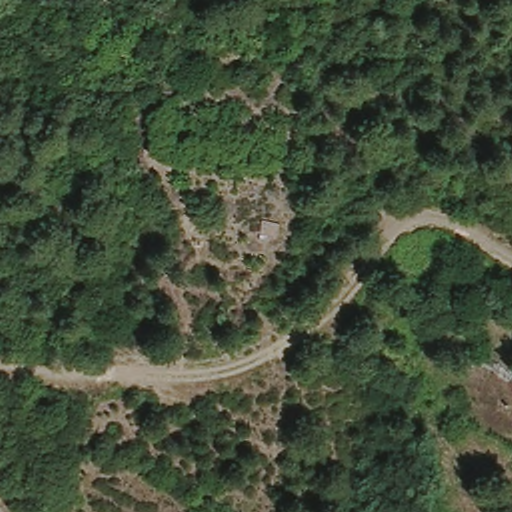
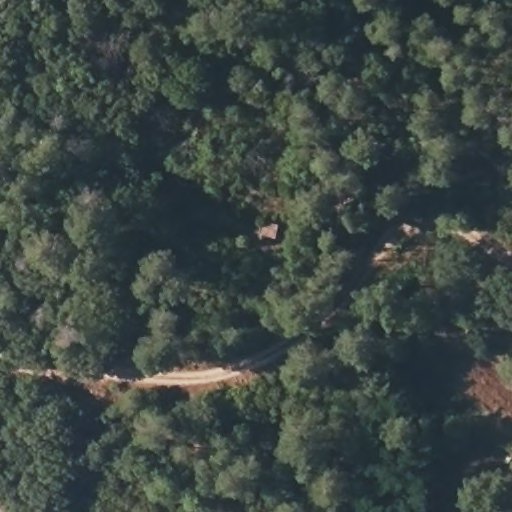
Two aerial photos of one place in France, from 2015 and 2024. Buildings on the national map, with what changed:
unchanged [(353,1),(353,0),(363,0),(353,1)]
unchanged [(276,221),(275,234),(260,232),(261,219),(276,221)]

